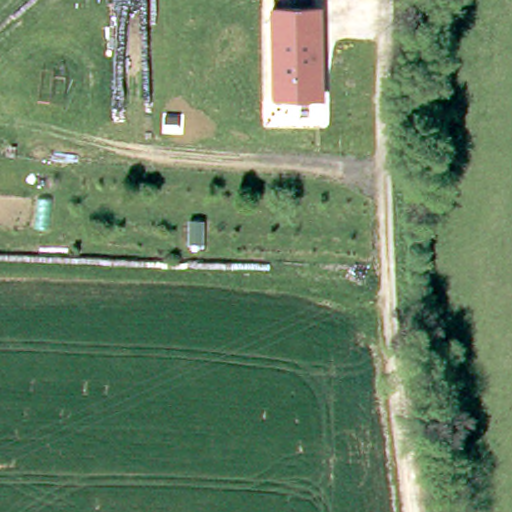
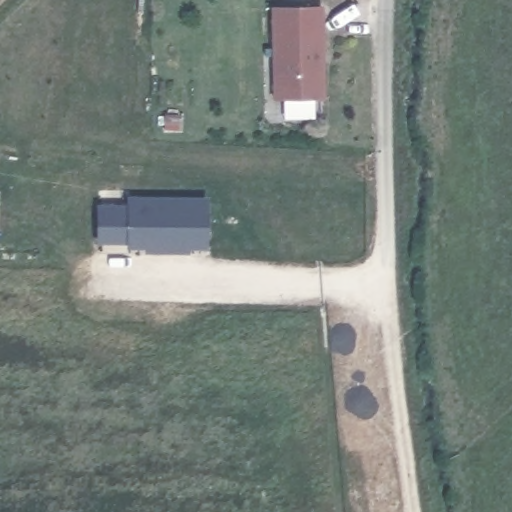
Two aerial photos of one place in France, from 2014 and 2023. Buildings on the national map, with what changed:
unchanged [(325,97),(275,98),(271,7),(323,5),(325,97)]
new [(126,202),(127,196),(207,197),(206,248),(188,249),(188,254),(143,253),(143,248),(127,249),(127,244),(96,244),(96,203),(126,202)]
demolished [(203,223),(203,248),(187,248),(188,223),(203,223)]

